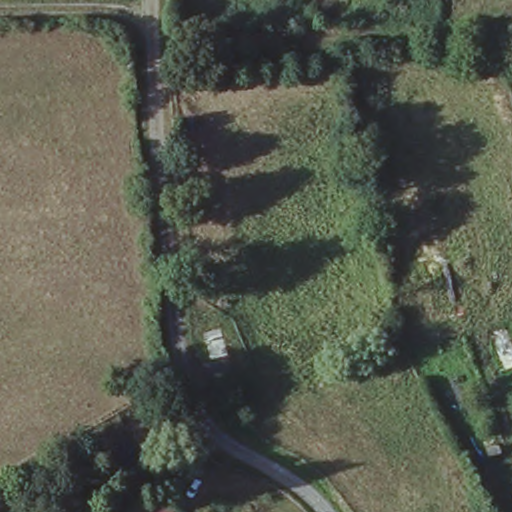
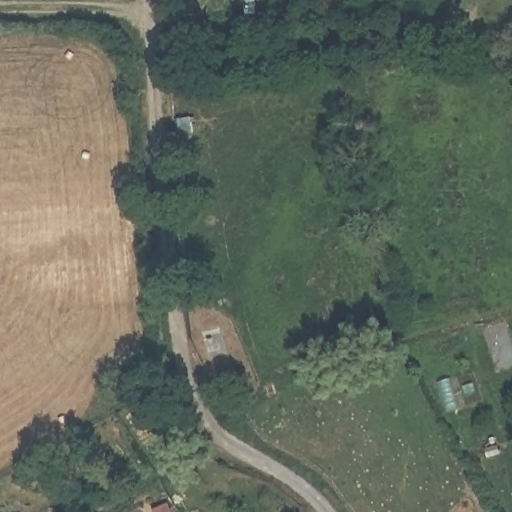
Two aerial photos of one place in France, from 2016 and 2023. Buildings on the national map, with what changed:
unchanged [(195,116),(179,117),(179,98),(194,99),(195,116)]

